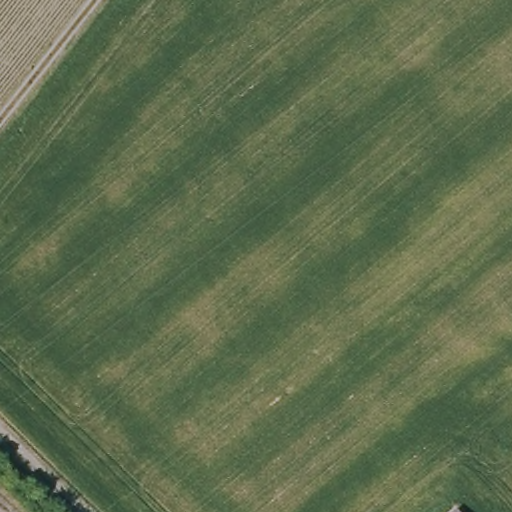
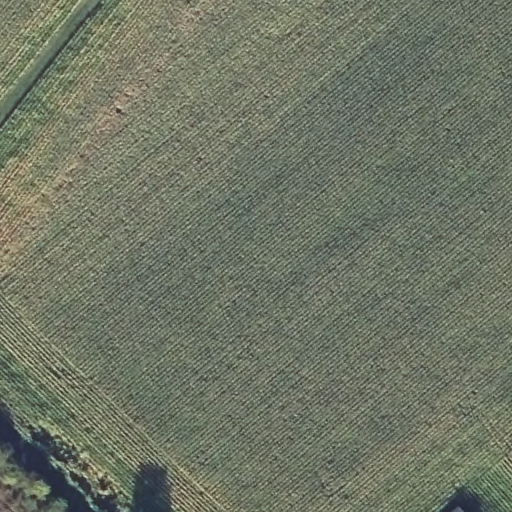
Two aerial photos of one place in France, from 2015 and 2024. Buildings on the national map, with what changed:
unchanged [(459,509),(461,512),(456,512),(459,509)]

